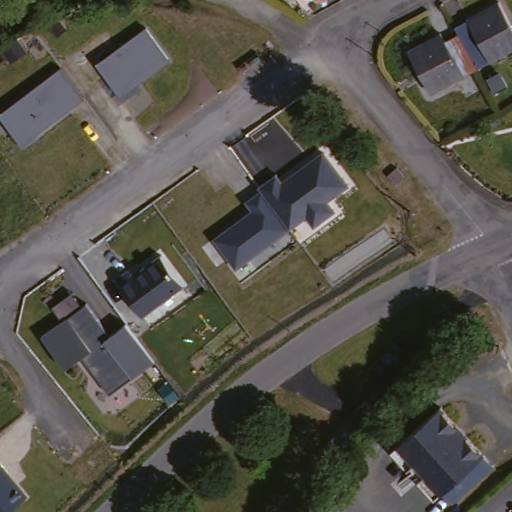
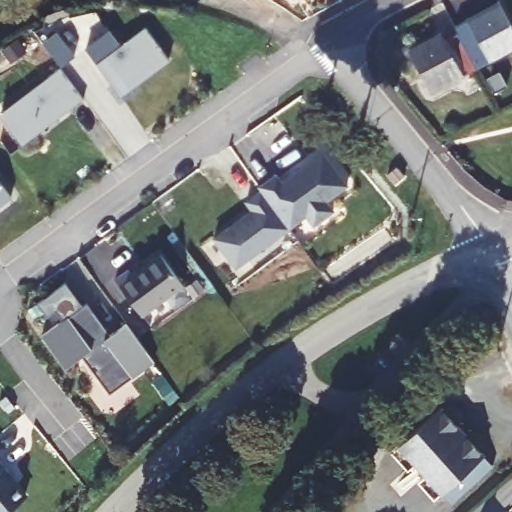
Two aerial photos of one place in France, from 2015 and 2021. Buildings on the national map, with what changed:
unchanged [(502,10),(512,29),(512,52),(479,68),(461,30),(502,10)]
unchanged [(145,23),(172,57),(122,96),(94,62),(145,23)]
unchanged [(479,68),(437,89),(417,51),(461,30),(479,68)]
unchanged [(86,96),(23,141),(0,114),(0,110),(61,65),(86,96)]
unchanged [(259,187),(277,172),(282,181),(322,152),(346,187),(327,202),(334,212),(314,227),(305,217),(290,229),(259,187)]
new [(0,207),(0,182),(12,198),(0,207)]
unchanged [(252,208),(244,197),(259,187),(290,229),(236,268),(215,237),(252,208)]
unchanged [(116,285),(160,252),(183,283),(141,316),(116,285)]
unchanged [(104,326),(104,334),(122,320),(155,362),(110,394),(82,356),(66,366),(41,328),(86,298),(104,326)]
unchanged [(445,405),(499,467),(456,505),(403,444),(445,405)]
unchanged [(6,512),(0,512),(0,459),(28,495),(6,512)]

